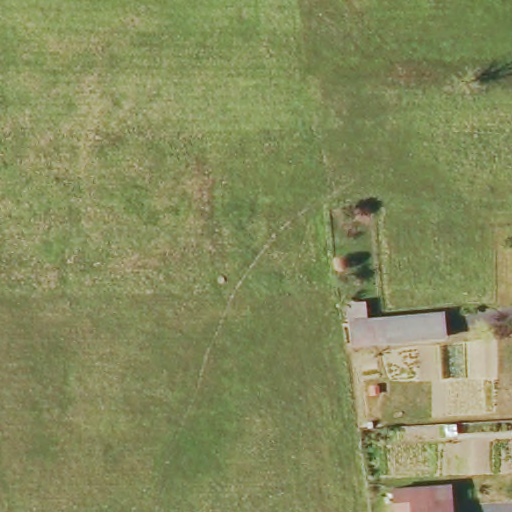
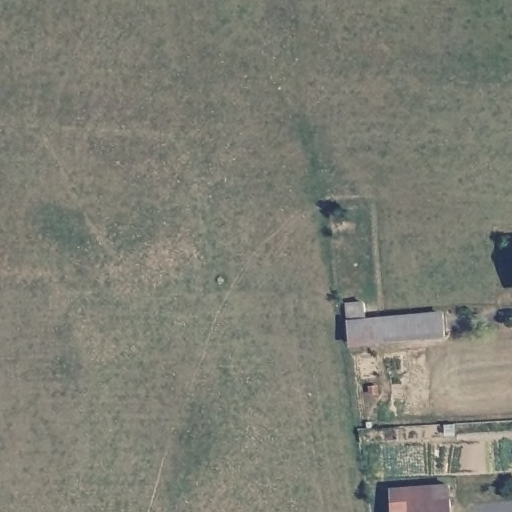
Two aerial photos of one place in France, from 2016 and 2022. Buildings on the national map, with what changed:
unchanged [(350,305),(364,305),(367,321),(442,314),(446,337),(352,345),(350,305)]
unchanged [(449,483),(453,512),(410,512),(408,501),(393,503),(394,487),(449,483)]

